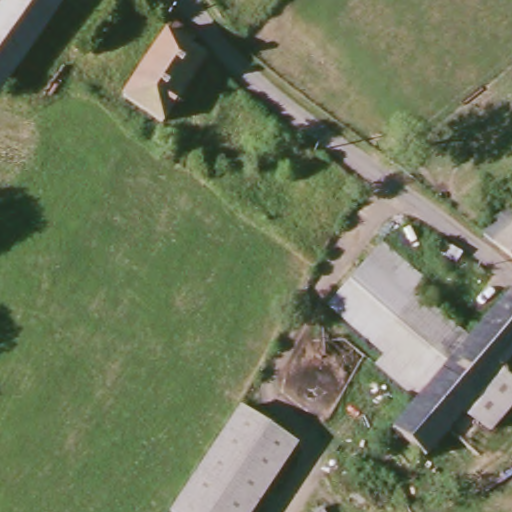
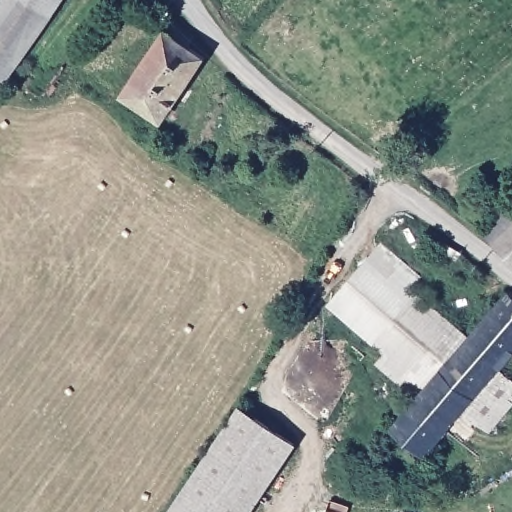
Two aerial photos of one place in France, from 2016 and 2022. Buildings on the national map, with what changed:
unchanged [(12,79),(0,96),(0,16),(11,0),(30,0),(54,19),(12,79)]
unchanged [(54,19),(30,0),(67,0),(54,19)]
unchanged [(176,27),(211,52),(214,57),(188,93),(149,65),(176,27)]
unchanged [(168,122),(154,112),(129,95),(149,65),(188,93),(168,122)]
unchanged [(505,252),(488,232),(511,212),(512,211),(512,259),(505,252)]
unchanged [(477,335),(424,395),(422,395),(386,363),(394,350),(339,301),(380,252),(477,335)]
unchanged [(422,395),(424,395),(477,335),(512,294),(512,363),(506,370),(466,415),(429,457),(396,428),(424,397),(422,395)]
unchanged [(512,375),(512,415),(498,432),(466,415),(506,370),(512,375)]
unchanged [(257,512),(168,512),(236,411),(298,452),(257,512)]
unchanged [(509,456),(512,454),(512,459),(509,456)]

